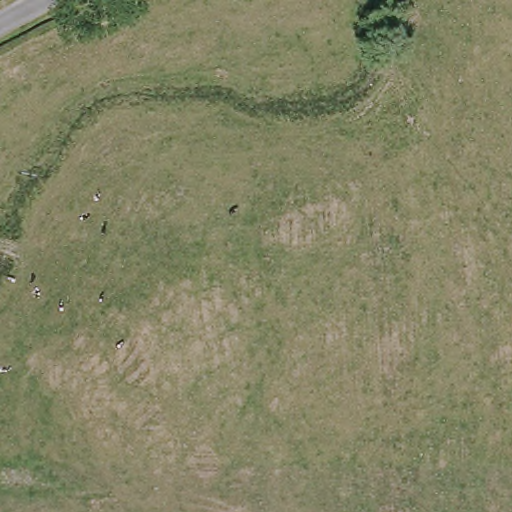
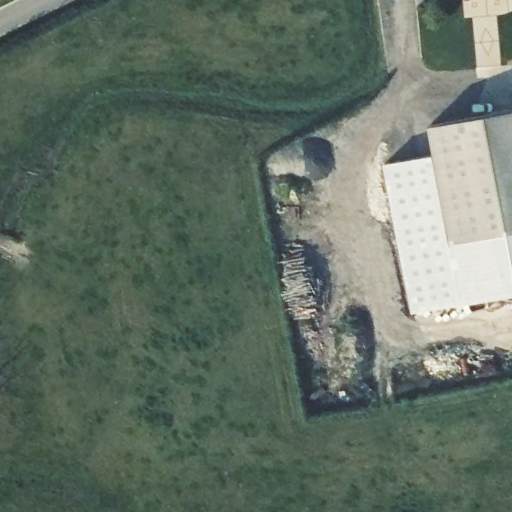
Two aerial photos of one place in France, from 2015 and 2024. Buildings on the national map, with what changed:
new [(512,106),(512,230),(459,241),(435,121),(512,106)]
new [(450,200),(459,241),(512,230),(512,293),(412,311),(384,164),(441,152),(450,200)]

